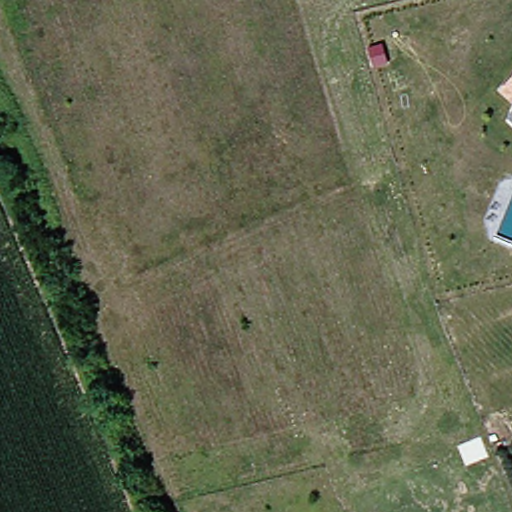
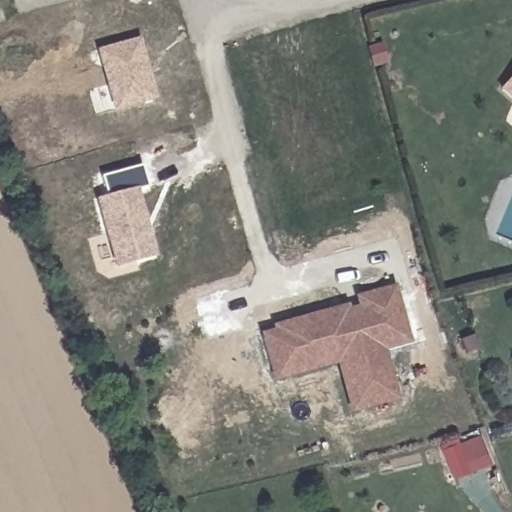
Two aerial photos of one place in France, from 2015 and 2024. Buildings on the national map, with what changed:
new [(95,51),(138,39),(156,99),(113,111),(95,51)]
unchanged [(501,89),(512,76),(512,99),(501,89)]
new [(95,199),(106,195),(101,178),(140,166),(146,187),(136,190),(156,256),(114,269),(95,199)]
new [(259,334),(272,330),(271,327),(347,305),(348,310),(356,307),(354,298),(394,286),(411,344),(384,352),(398,400),(349,413),(335,365),(272,382),(259,334)]
new [(444,450),(481,436),(493,467),(456,480),(444,450)]

